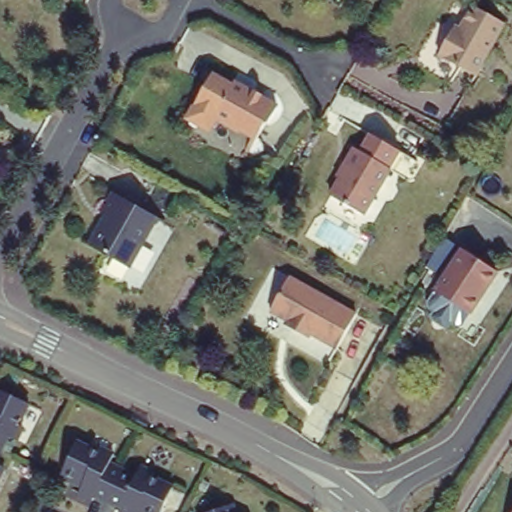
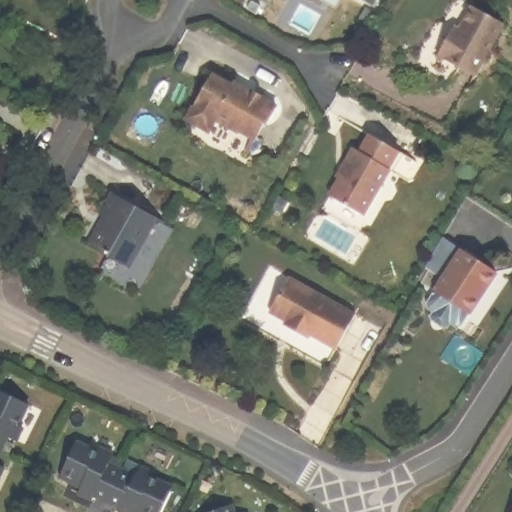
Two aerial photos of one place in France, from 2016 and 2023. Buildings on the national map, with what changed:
unchanged [(508,24),(473,78),(446,61),(458,42),(451,37),(474,1),(508,24)]
unchanged [(279,105),(268,123),(260,138),(242,128),(240,130),(214,115),(234,79),(279,105)]
unchanged [(362,152),(373,134),(398,151),(387,169),(389,169),(360,214),(332,196),(350,169),(345,166),(356,148),(362,152)]
unchanged [(160,219),(131,267),(92,244),(110,215),(104,212),(115,193),(160,219)]
unchanged [(461,245),(498,272),(472,313),(436,289),(461,245)]
unchanged [(352,317),(332,353),(306,339),(303,343),(286,334),(289,328),(266,315),(286,281),(352,317)]
unchanged [(27,401),(17,422),(22,423),(15,437),(8,434),(1,447),(0,450),(0,388),(27,401)]
unchanged [(76,440),(96,449),(98,444),(114,453),(110,461),(135,473),(139,466),(151,472),(150,474),(173,484),(160,512),(141,512),(135,509),(134,512),(123,512),(119,510),(120,507),(94,494),(91,499),(76,492),(80,483),(60,474),(76,440)]
unchanged [(3,466),(0,472),(0,464),(3,466)]
unchanged [(233,509),(234,512),(224,512),(233,509)]
unchanged [(512,511),(512,512),(511,512),(512,511)]

